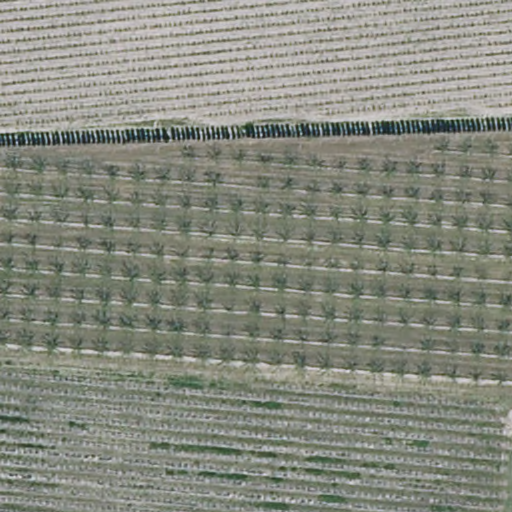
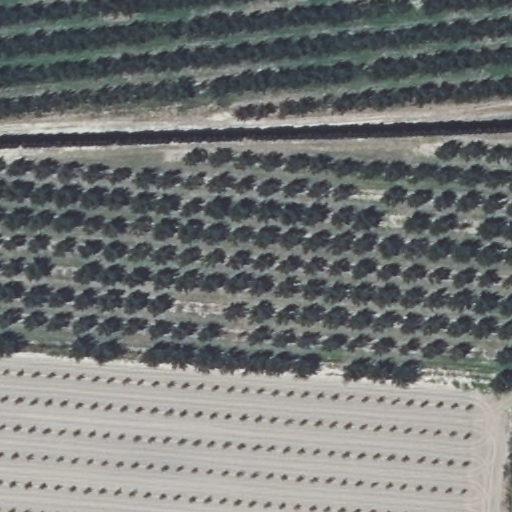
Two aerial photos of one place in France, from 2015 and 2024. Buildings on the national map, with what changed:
[]

